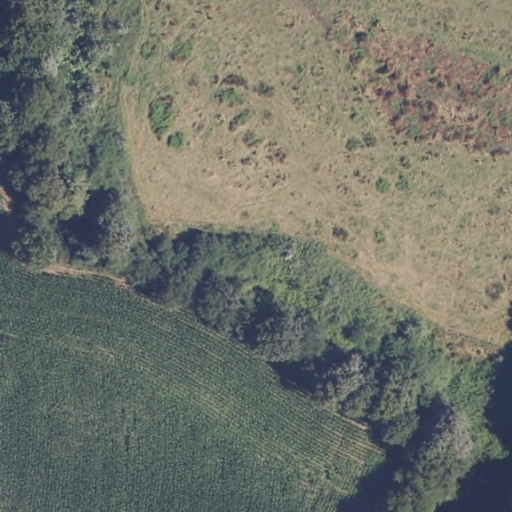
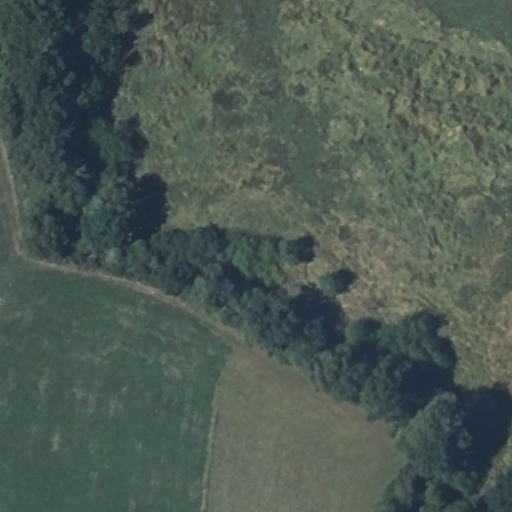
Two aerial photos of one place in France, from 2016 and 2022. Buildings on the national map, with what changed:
[]

